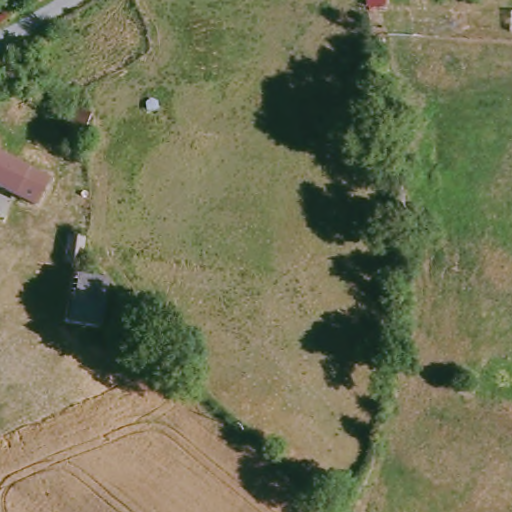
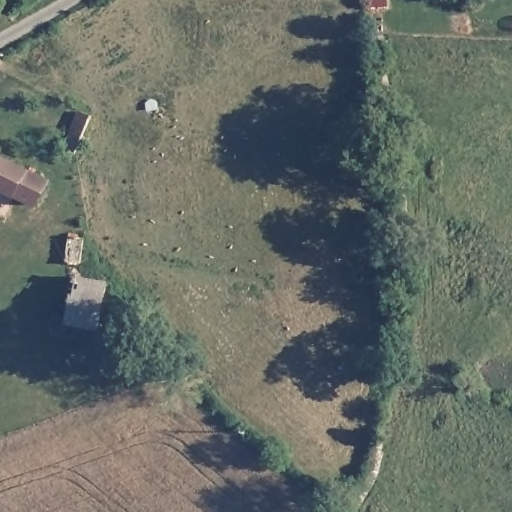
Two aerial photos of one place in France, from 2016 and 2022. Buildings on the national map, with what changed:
unchanged [(90,115),(77,154),(61,149),(77,110),(90,115)]
unchanged [(61,186),(46,214),(0,190),(0,154),(61,186)]
unchanged [(85,267),(69,266),(73,237),(88,239),(85,267)]
unchanged [(108,279),(104,323),(4,313),(13,268),(84,276),(108,279)]

